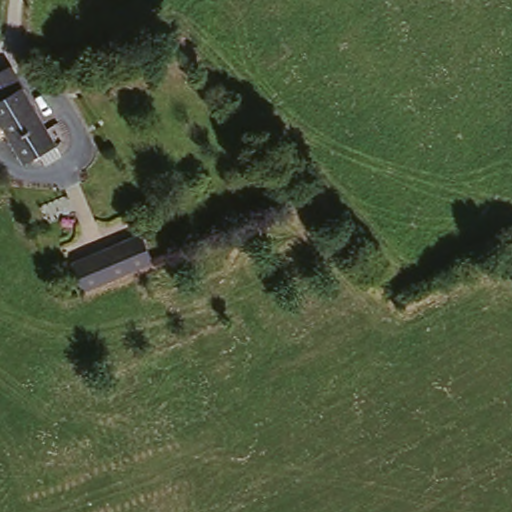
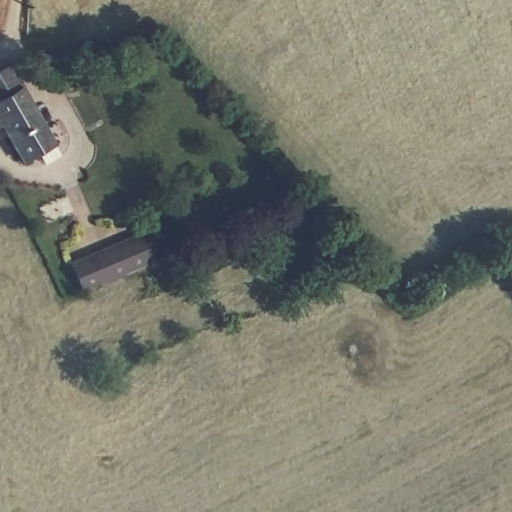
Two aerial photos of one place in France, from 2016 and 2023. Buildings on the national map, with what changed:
unchanged [(19,66),(61,145),(25,163),(16,146),(3,153),(0,146),(0,75),(19,66)]
unchanged [(138,237),(134,241),(119,262),(94,295),(76,281),(119,222),(129,230),(138,237)]

